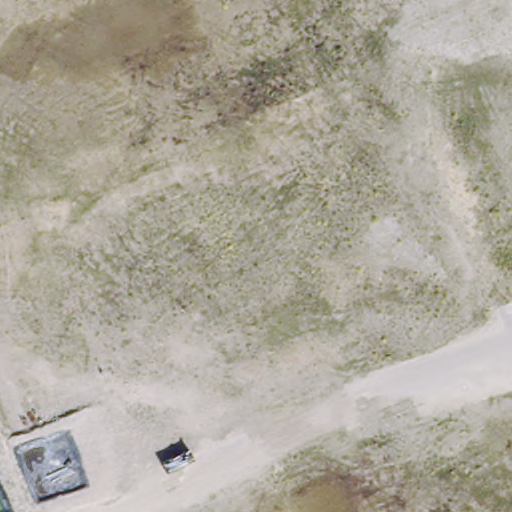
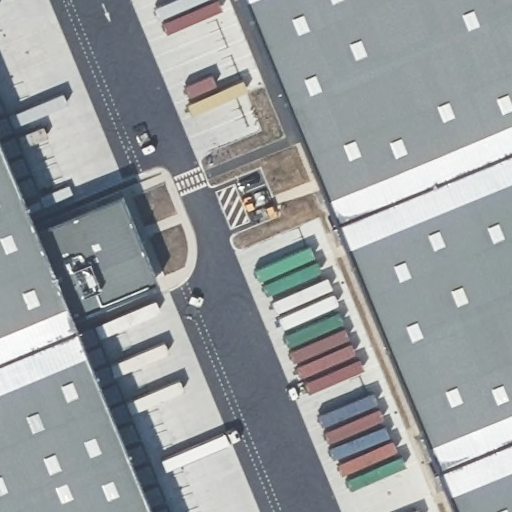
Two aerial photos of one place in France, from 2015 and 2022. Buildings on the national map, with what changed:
new [(0,512),(0,0),(17,0),(242,512),(0,512)]
new [(387,512),(170,0),(512,0),(512,512),(387,512)]
demolished [(438,94),(512,64),(512,274),(438,94)]

